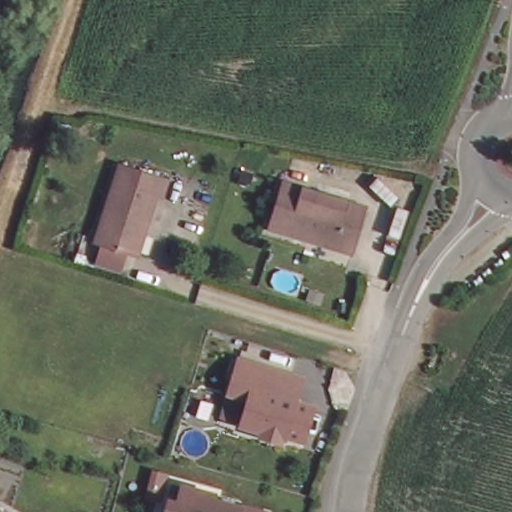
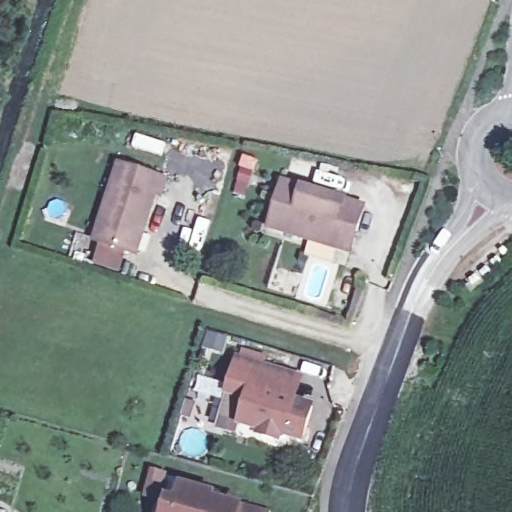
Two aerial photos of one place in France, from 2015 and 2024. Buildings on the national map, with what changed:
unchanged [(108,215),(125,165),(178,182),(171,201),(163,197),(153,227),(108,215)]
unchanged [(342,253),(271,232),(281,200),(285,185),(300,190),(370,210),(359,242),(354,257),(342,253)]
unchanged [(136,258),(98,246),(99,241),(108,215),(153,227),(151,234),(143,254),(141,261),(136,258)]
unchanged [(293,376),(304,379),(302,386),(296,403),(316,409),(313,416),(304,442),(294,438),(286,437),(286,438),(279,442),(261,436),(259,430),(241,423),(248,399),(228,392),(238,363),(239,358),(293,376)]
unchanged [(167,503),(179,506),(183,485),(214,491),(213,499),(246,506),(269,510),(268,512),(166,512),(166,510),(167,503)]

